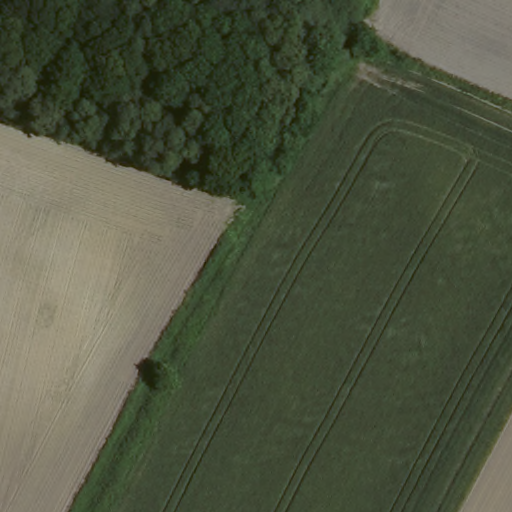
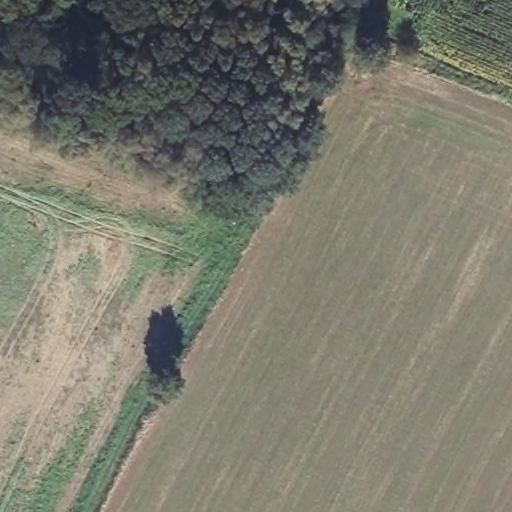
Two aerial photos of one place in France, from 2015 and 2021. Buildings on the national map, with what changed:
[]

